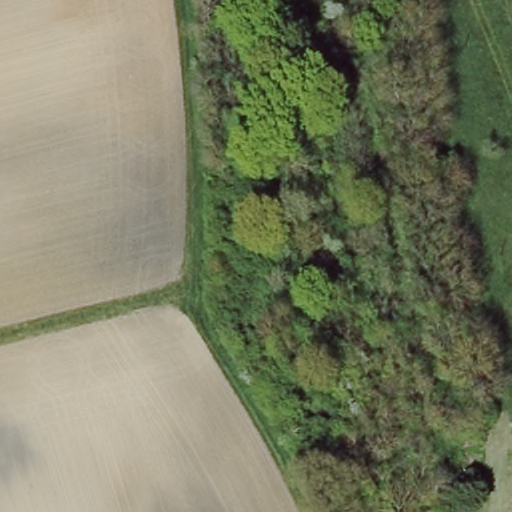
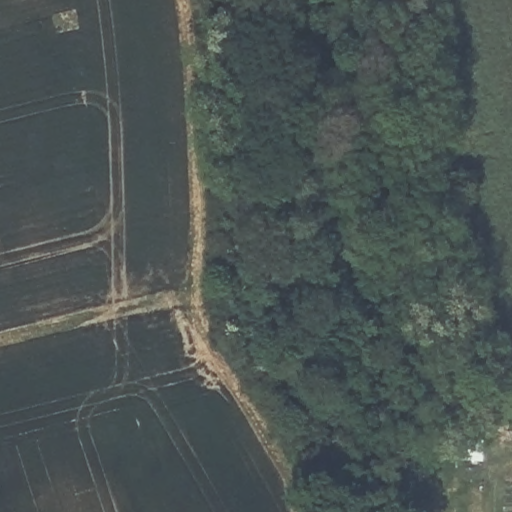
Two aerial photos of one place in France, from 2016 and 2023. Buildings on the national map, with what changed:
[]

